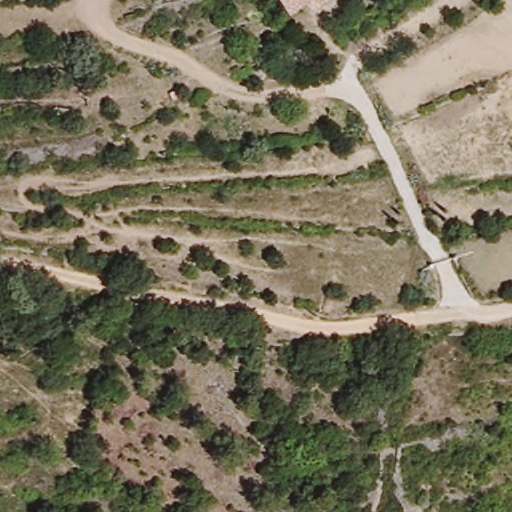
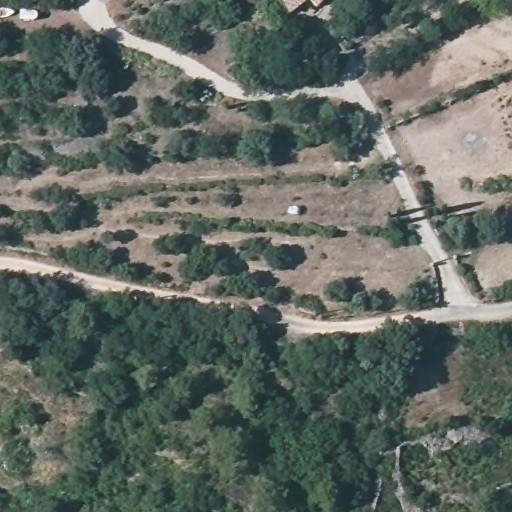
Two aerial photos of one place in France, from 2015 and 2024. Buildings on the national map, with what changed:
unchanged [(291,17),(274,0),(307,0),(309,1),(291,17)]
unchanged [(316,8),(309,1),(307,0),(323,0),(316,8)]

